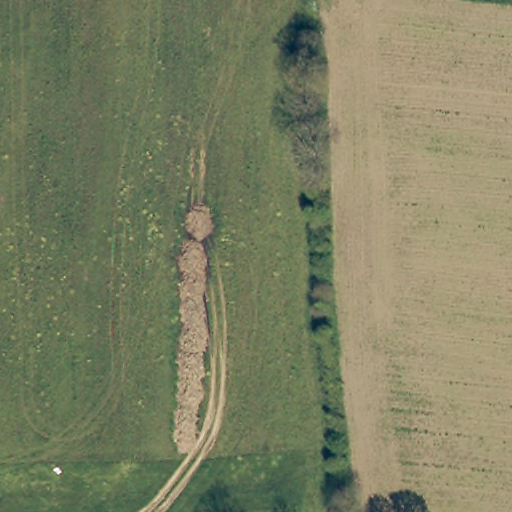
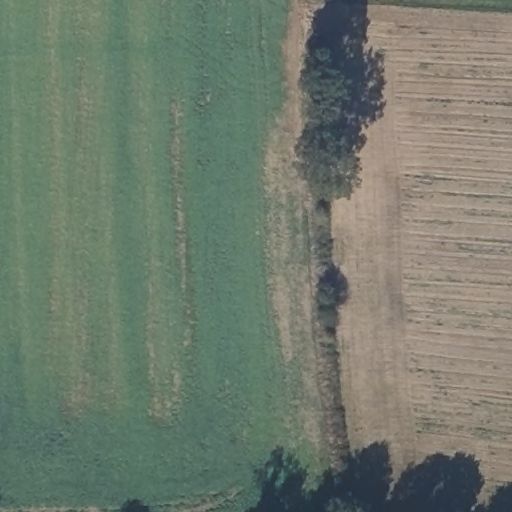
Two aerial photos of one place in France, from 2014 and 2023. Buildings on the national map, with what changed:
[]

